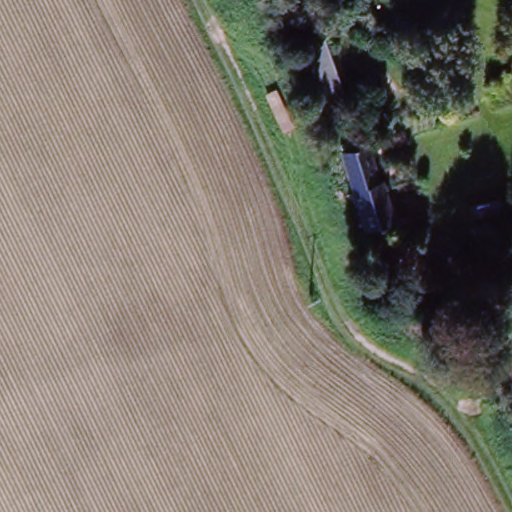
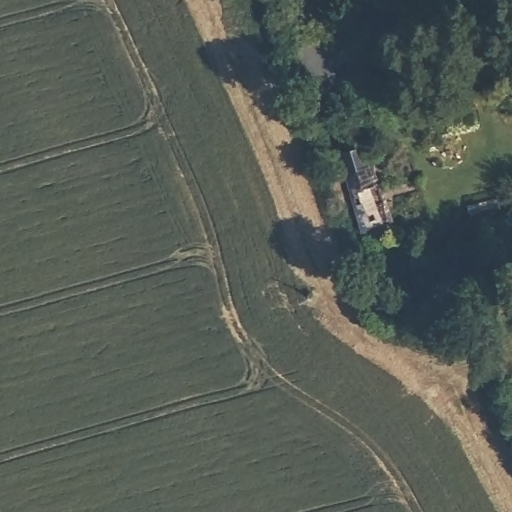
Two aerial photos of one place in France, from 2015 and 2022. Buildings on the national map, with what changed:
unchanged [(385,262),(367,210),(360,187),(387,179),(395,201),(412,254),(385,262)]

